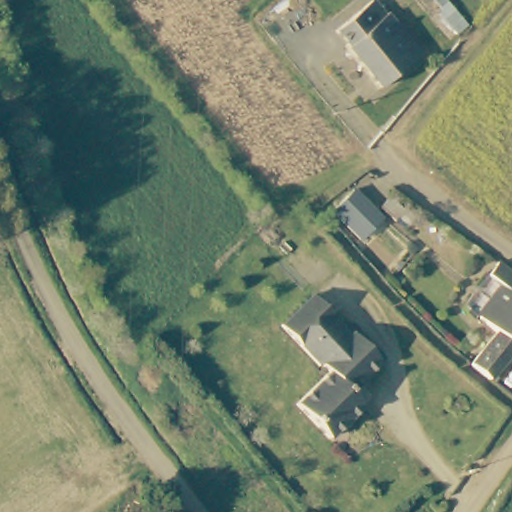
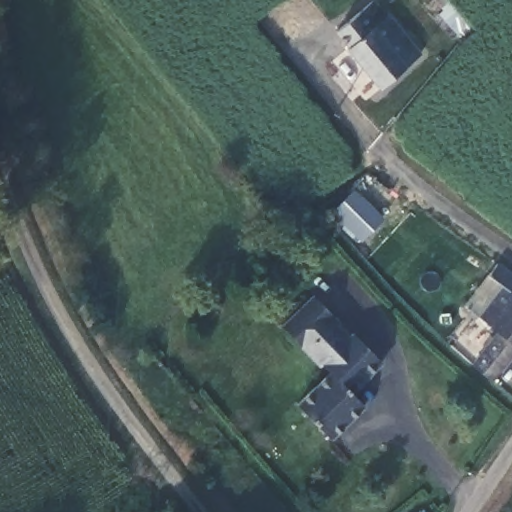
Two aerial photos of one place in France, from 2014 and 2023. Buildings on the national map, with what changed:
unchanged [(369,6),(381,16),(383,14),(409,36),(403,45),(419,56),(389,90),(336,43),(359,17),(369,6)]
unchanged [(386,222),(369,238),(337,205),(353,189),(386,222)]
unchanged [(512,269),(512,342),(496,325),(473,298),(508,265),(512,269)]
unchanged [(355,335),(383,365),(355,396),(365,406),(337,440),(311,411),(339,380),(294,332),(319,307),(350,340),(355,335)]
unchanged [(512,342),(512,362),(485,388),(458,362),(496,325),(512,342)]

